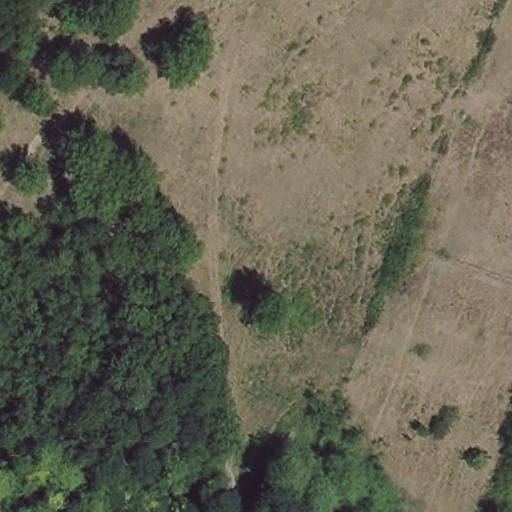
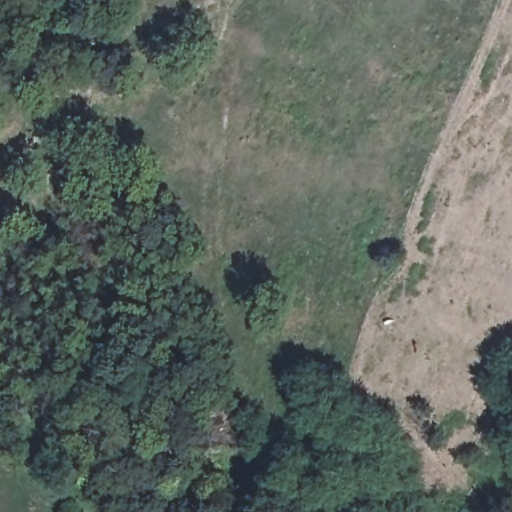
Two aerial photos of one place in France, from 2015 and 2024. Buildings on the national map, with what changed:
[]

